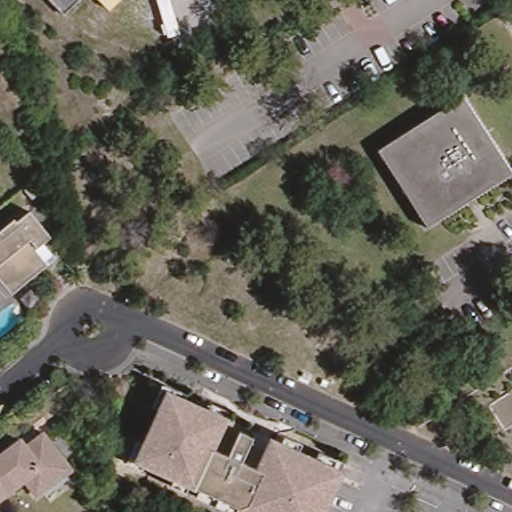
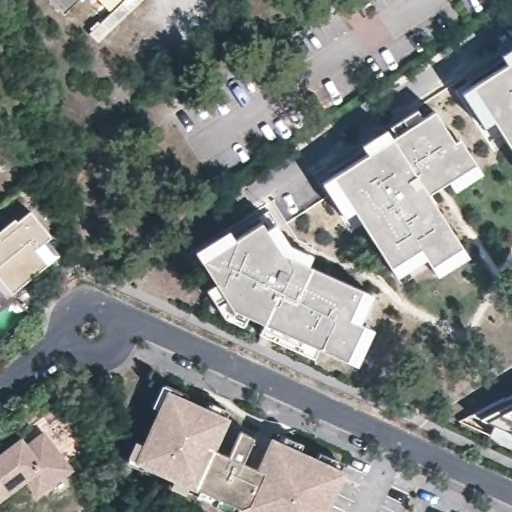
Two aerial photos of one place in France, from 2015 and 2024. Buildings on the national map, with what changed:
unchanged [(59,20),(40,0),(79,0),(59,20)]
new [(494,122),(484,127),(463,92),(507,64),(501,54),(512,47),(512,150),(494,122)]
demolished [(436,220),(386,143),(471,90),(512,154),(512,170),(436,220)]
new [(423,118),(435,110),(455,141),(460,137),(481,171),(483,172),(455,191),(448,182),(430,194),(470,256),(438,277),(426,259),(394,279),(350,215),(344,217),(323,182),(367,155),(360,145),(417,108),(423,118)]
unchanged [(34,196),(27,202),(19,194),(28,187),(34,196)]
unchanged [(34,254),(47,268),(11,298),(0,286),(0,234),(14,223),(16,226),(28,215),(50,241),(34,254)]
new [(289,245),(312,255),(308,263),(375,293),(361,323),(375,328),(358,365),(320,348),(315,360),(260,335),(265,324),(248,317),(243,327),(224,318),(208,288),(216,283),(196,252),(230,231),(235,238),(262,222),(266,229),(277,223),(289,245)]
unchanged [(12,300),(0,310),(0,286),(11,298),(12,300)]
unchanged [(230,423),(246,430),(250,421),(265,427),(260,437),(275,443),(282,428),(353,461),(330,512),(280,512),(147,452),(179,382),(237,408),(230,423)]
demolished [(512,392),(512,427),(501,435),(485,410),(512,392)]
new [(500,444),(489,435),(493,426),(471,415),(512,393),(512,449),(500,444)]
unchanged [(0,500),(0,456),(5,453),(11,448),(20,442),(26,450),(43,437),(69,473),(38,498),(24,482),(0,500)]

